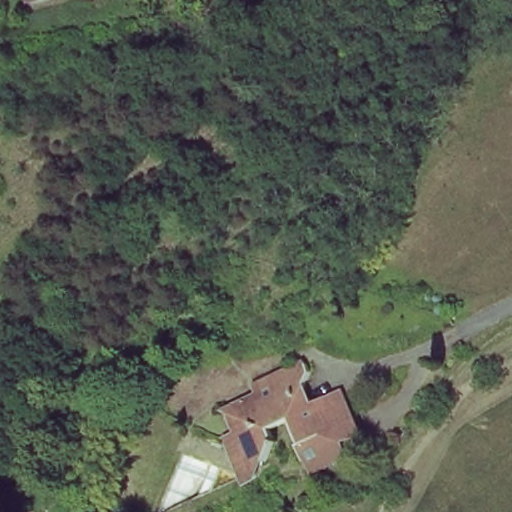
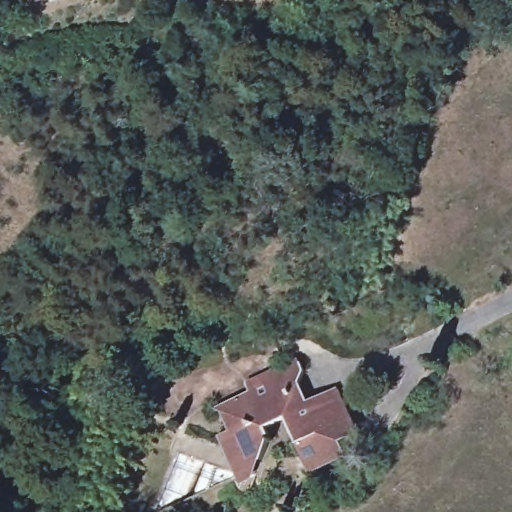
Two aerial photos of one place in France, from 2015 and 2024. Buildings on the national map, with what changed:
unchanged [(350,426),(336,433),(343,448),(306,466),(294,441),(299,438),(289,418),(286,413),(268,422),(272,430),(271,432),(262,456),(248,450),(229,442),(238,416),(229,400),(254,388),(249,380),(293,356),(301,368),(294,375),(305,400),(323,392),(333,388),(350,426)]

